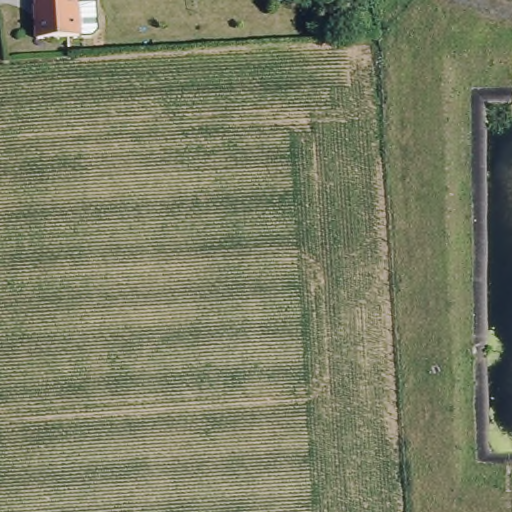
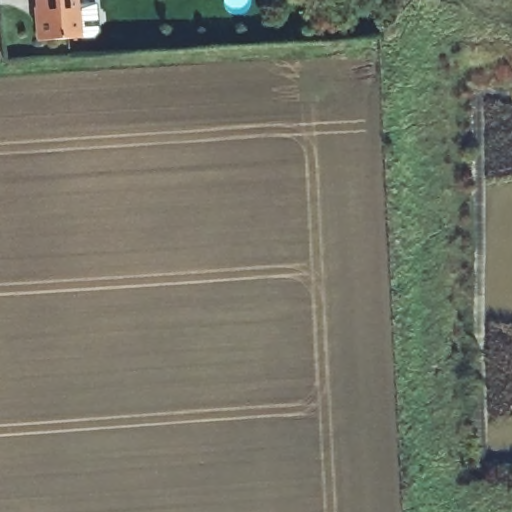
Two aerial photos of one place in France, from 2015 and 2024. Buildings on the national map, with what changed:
unchanged [(80,32),(39,33),(37,10),(40,9),(40,0),(76,0),(78,0),(80,32)]

